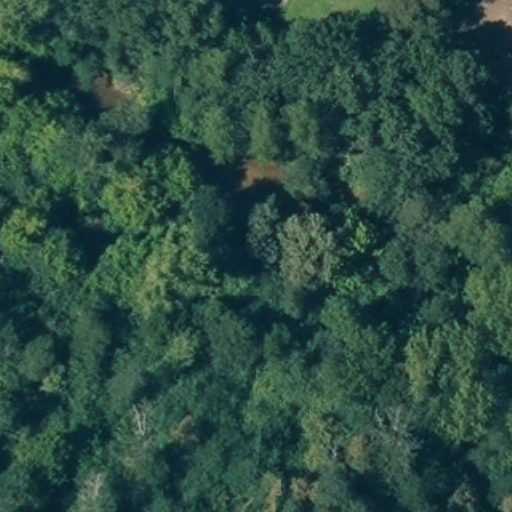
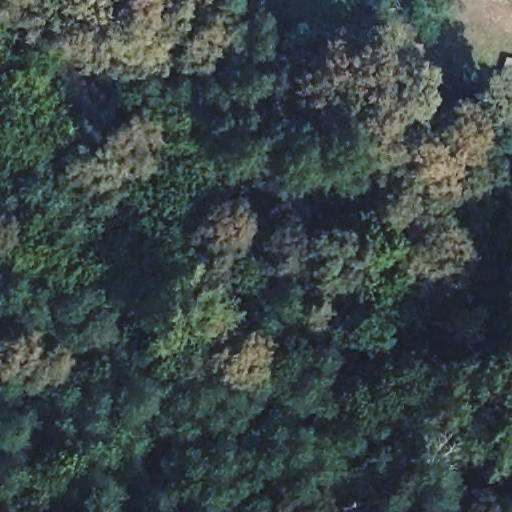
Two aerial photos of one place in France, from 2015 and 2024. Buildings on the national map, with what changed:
unchanged [(205,0),(256,0),(249,21),(205,0)]
unchanged [(512,104),(497,99),(506,54),(512,56),(512,104)]

